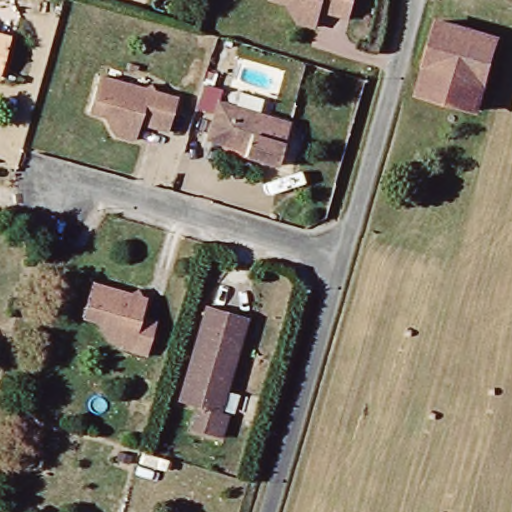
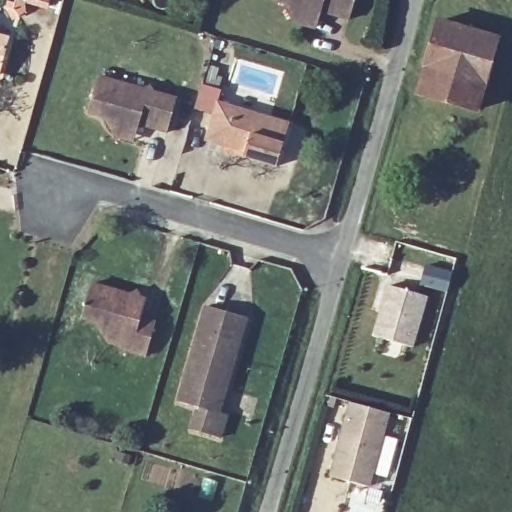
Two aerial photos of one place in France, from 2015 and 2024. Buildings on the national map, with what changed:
unchanged [(291,16),(284,3),(274,0),(355,0),(350,16),(322,8),(319,19),(296,13),(291,16)]
unchanged [(491,41),(478,84),(475,84),(421,66),(420,66),(435,23),(491,41)]
unchanged [(0,46),(0,38),(2,39),(0,46)]
unchanged [(414,89),(421,66),(475,84),(467,107),(414,89)]
unchanged [(131,130),(114,125),(109,129),(103,118),(86,113),(98,77),(141,91),(148,88),(153,95),(174,101),(165,130),(135,121),(131,130)]
unchanged [(209,117),(189,111),(196,87),(216,93),(213,105),(283,125),(271,170),(237,160),(238,155),(201,144),(202,139),(209,117)]
unchanged [(121,337),(108,333),(100,337),(94,323),(78,319),(88,283),(125,294),(134,289),(138,298),(143,299),(136,324),(149,328),(141,354),(118,348),(121,337)]
new [(391,283),(429,294),(415,344),(376,333),(391,283)]
unchanged [(231,419),(225,442),(199,434),(205,412),(185,406),(212,310),(251,321),(224,418),(231,419)]
new [(352,399),(391,409),(370,484),(332,474),(352,399)]

